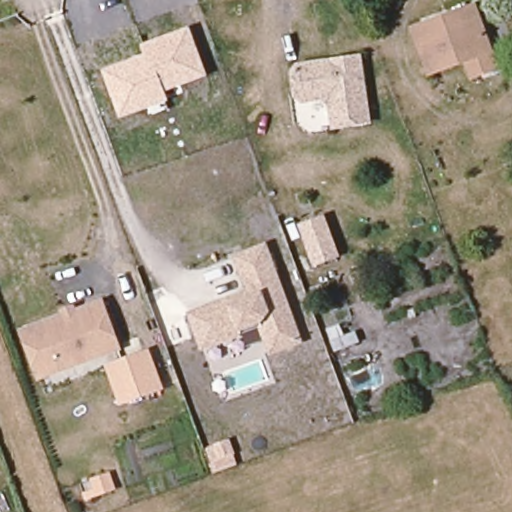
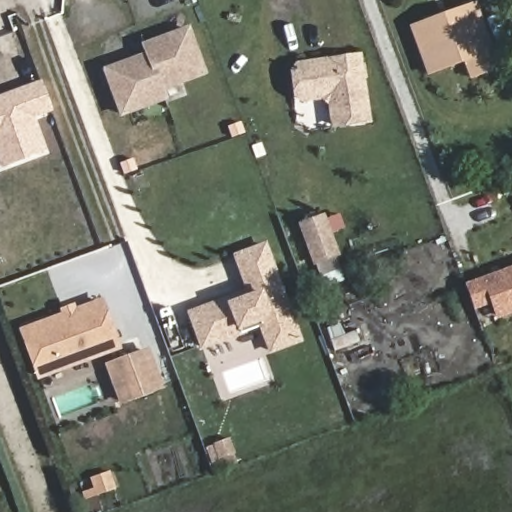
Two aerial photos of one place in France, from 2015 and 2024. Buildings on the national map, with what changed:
unchanged [(500,73),(470,83),(463,66),(425,77),(408,28),(475,4),(500,73)]
unchanged [(165,91),(169,100),(120,118),(102,69),(143,54),(139,43),(189,26),(206,76),(165,91)]
unchanged [(361,56),(370,124),(330,131),(326,102),(295,104),(290,65),(361,56)]
new [(0,97),(38,82),(49,112),(31,119),(43,153),(3,168),(0,160),(0,97)]
unchanged [(323,215),(338,256),(310,266),(298,225),(323,215)]
unchanged [(264,246),(299,342),(268,351),(258,326),(201,347),(189,313),(247,292),(235,257),(264,246)]
new [(512,271),(512,312),(504,314),(498,299),(479,306),(472,286),(512,271)]
unchanged [(102,298),(120,350),(37,379),(18,328),(102,298)]
unchanged [(163,389),(120,405),(105,364),(149,349),(163,389)]
new [(230,439),(239,462),(219,469),(210,446),(230,439)]

